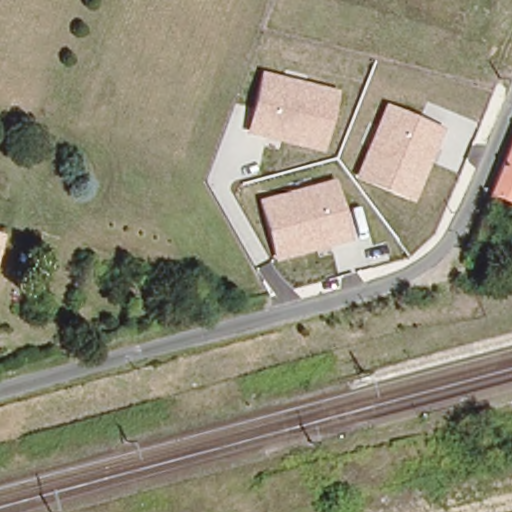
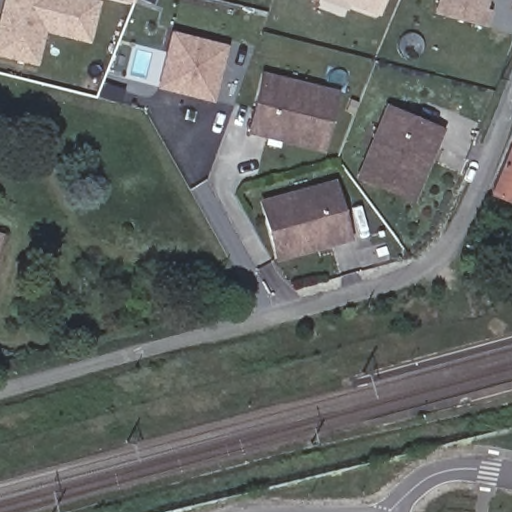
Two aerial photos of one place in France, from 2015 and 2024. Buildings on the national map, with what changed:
new [(72,37),(43,29),(35,63),(0,55),(0,16),(4,0),(88,0),(97,2),(87,41),(72,37)]
new [(133,1),(129,0),(134,0),(133,1)]
new [(379,16),(335,0),(385,0),(379,16)]
new [(491,9),(487,26),(433,13),(436,0),(488,0),(486,8),(491,9)]
new [(165,57),(171,33),(225,46),(212,100),(173,90),(158,87),(165,57)]
unchanged [(323,152),(244,134),(260,71),(338,90),(323,152)]
unchanged [(413,202),(355,177),(384,104),(444,128),(413,202)]
unchanged [(512,200),(490,192),(512,135),(512,200)]
unchanged [(351,240),(274,262),(257,199),(334,178),(351,240)]
unchanged [(0,241),(0,234),(2,235),(0,241)]

